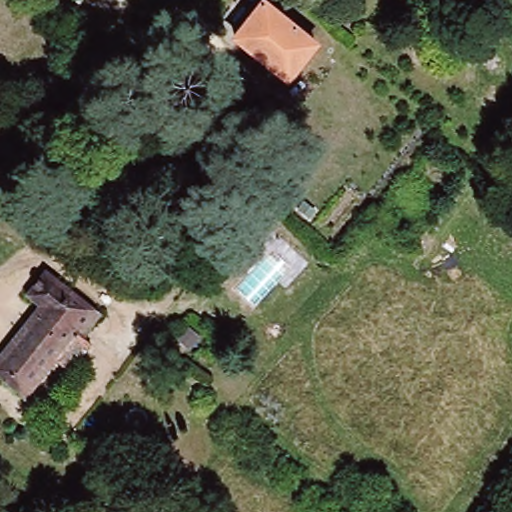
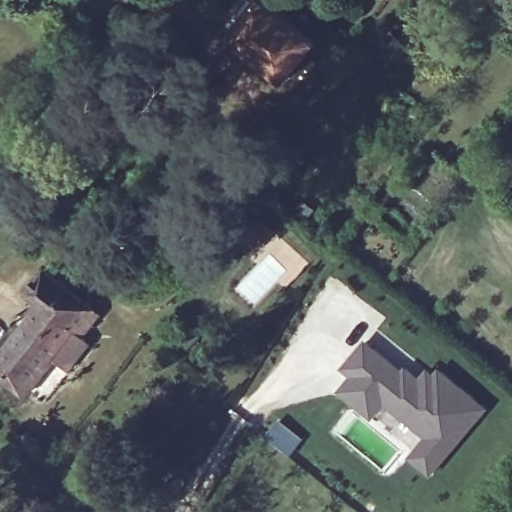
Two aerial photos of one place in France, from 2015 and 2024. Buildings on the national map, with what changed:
unchanged [(315,46),(287,82),(235,40),(263,4),(315,46)]
unchanged [(75,337),(69,334),(18,397),(0,382),(0,349),(35,306),(22,295),(42,270),(94,313),(75,337)]
new [(487,406),(432,475),(410,457),(427,437),(386,402),(373,418),(340,390),(353,374),(345,368),(366,340),(404,371),(407,367),(422,379),(429,371),(435,375),(439,370),(487,406)]
new [(278,424),(300,442),(289,456),(266,438),(278,424)]

